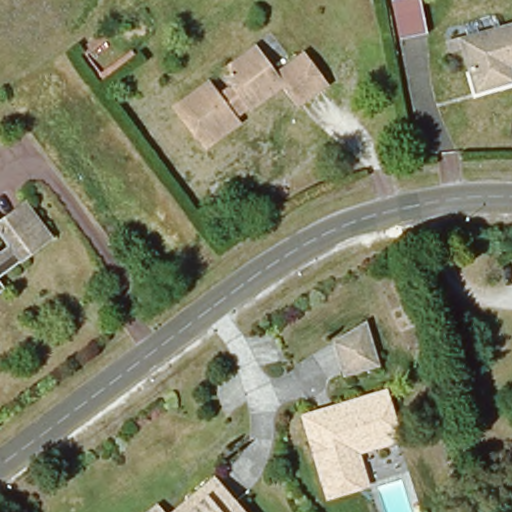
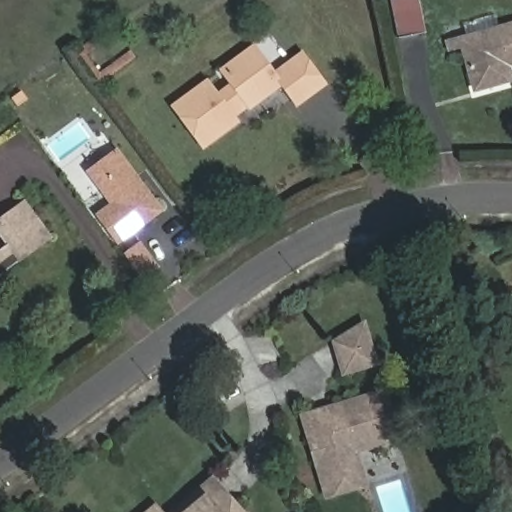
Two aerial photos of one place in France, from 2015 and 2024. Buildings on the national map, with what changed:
unchanged [(394,2),(405,0),(423,0),(429,32),(403,39),(394,2)]
unchanged [(462,40),(512,26),(512,65),(508,66),(512,81),(476,91),(462,40)]
unchanged [(239,122),(202,147),(173,107),(210,81),(222,97),(234,89),(228,80),(225,76),(223,72),(227,69),(230,66),(259,46),(279,75),(309,55),(329,84),(299,104),(285,84),(244,112),(236,117),(239,122)]
new [(95,215),(110,204),(86,172),(103,160),(118,147),(165,211),(119,246),(107,230),(95,215)]
unchanged [(11,222),(33,205),(58,237),(4,279),(9,286),(0,293),(0,227),(4,227),(11,222)]
new [(141,241),(161,268),(151,275),(144,281),(124,254),(132,248),(141,241)]
unchanged [(337,344),(366,327),(378,366),(347,376),(337,344)]
unchanged [(329,498),(324,483),(305,419),(322,413),(329,418),(339,415),(337,409),(386,395),(399,441),(357,453),(363,472),(368,487),(329,498)]
unchanged [(216,479),(245,512),(178,512),(188,503),(216,479)]
unchanged [(162,512),(154,512),(159,508),(162,512)]

